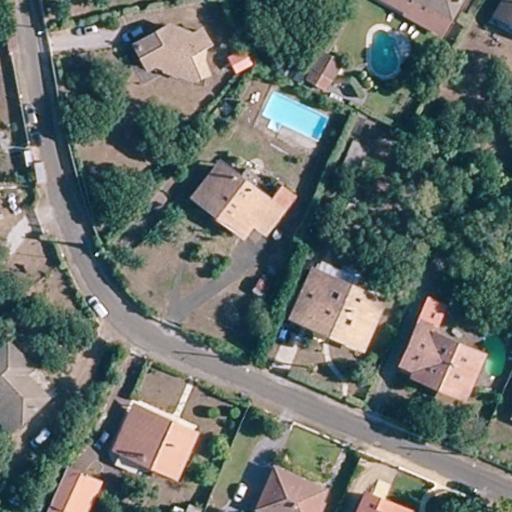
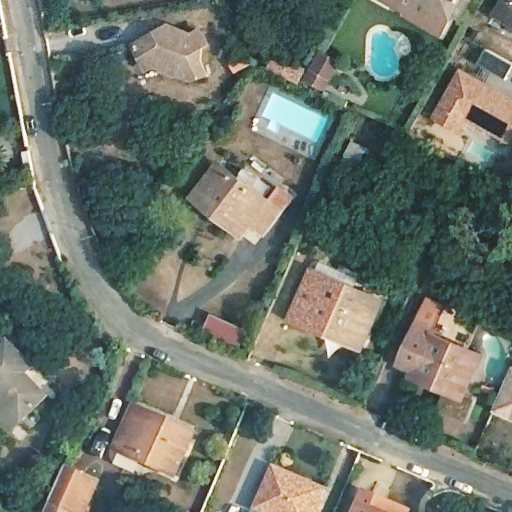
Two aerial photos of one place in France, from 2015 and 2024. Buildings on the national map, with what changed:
unchanged [(437,33),(400,11),(380,0),(456,0),(437,33)]
unchanged [(501,19),(490,14),(498,0),(512,0),(512,26),(501,19)]
unchanged [(179,40),(189,35),(197,50),(193,52),(190,64),(196,76),(184,81),(168,76),(163,79),(153,75),(150,71),(141,67),(131,71),(121,50),(156,33),(179,40)]
unchanged [(339,63),(325,88),(309,79),(322,54),(339,63)]
unchanged [(265,68),(271,56),(303,71),(297,82),(265,68)]
new [(512,93),(512,143),(472,121),(464,135),(434,119),(464,65),(512,93)]
unchanged [(358,172),(342,166),(353,142),(367,148),(358,172)]
unchanged [(277,185),(287,192),(277,206),(260,228),(248,219),(239,230),(214,211),(189,192),(215,157),(223,165),(267,199),(277,185)]
unchanged [(364,340),(314,318),(312,323),(296,317),(314,273),(379,301),(364,340)]
unchanged [(416,367),(404,362),(421,325),(438,332),(436,337),(479,357),(462,396),(444,389),(412,375),(416,367)]
unchanged [(19,370),(41,394),(6,426),(0,420),(0,342),(4,339),(25,362),(19,370)]
unchanged [(173,476),(116,450),(133,414),(173,432),(177,425),(193,433),(173,476)]
unchanged [(85,512),(46,512),(67,467),(99,482),(85,512)]
unchanged [(264,512),(257,509),(275,470),(323,491),(314,512),(264,512)]
unchanged [(388,505),(386,512),(360,512),(367,495),(388,505)]

